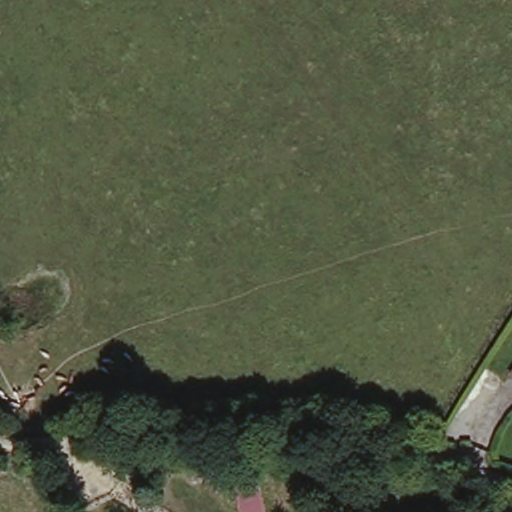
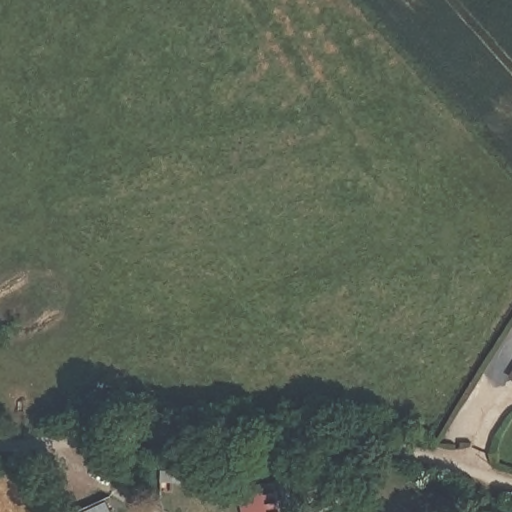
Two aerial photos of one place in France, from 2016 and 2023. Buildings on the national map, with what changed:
unchanged [(238,500),(265,495),(269,512),(241,512),(238,500)]

